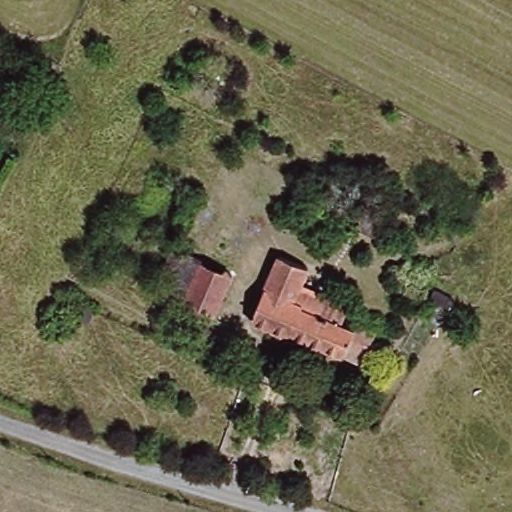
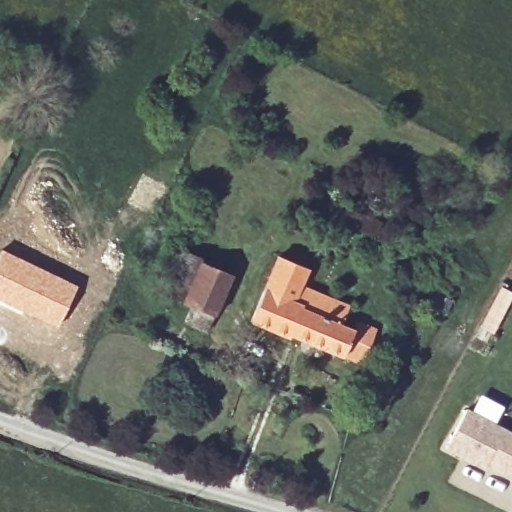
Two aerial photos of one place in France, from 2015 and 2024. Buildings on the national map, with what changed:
unchanged [(185,244),(235,268),(226,288),(175,263),(185,244)]
new [(1,247),(77,283),(57,327),(0,300),(0,249),(1,247)]
unchanged [(327,362),(252,320),(281,256),(307,270),(302,281),(311,285),(324,257),(347,271),(338,286),(357,299),(346,319),(366,330),(352,354),(338,345),(327,362)]
unchanged [(162,290),(175,263),(226,288),(213,315),(162,290)]
new [(447,448),(467,410),(512,434),(512,476),(512,477),(487,464),(485,467),(463,456),(447,448)]

